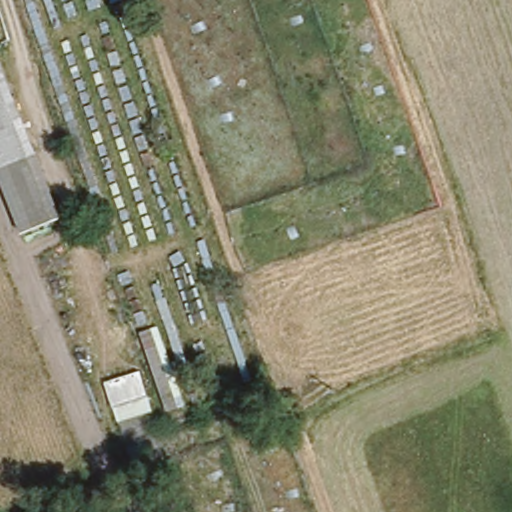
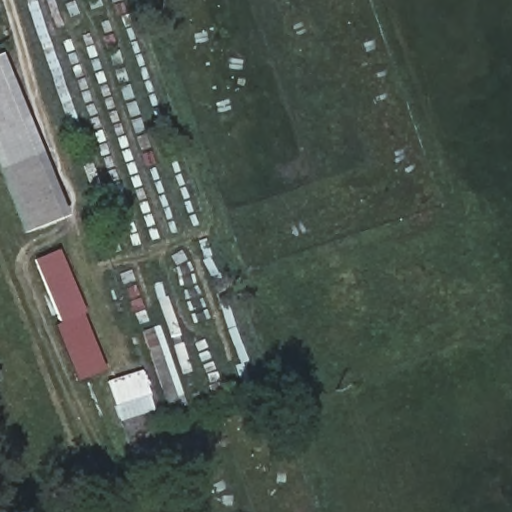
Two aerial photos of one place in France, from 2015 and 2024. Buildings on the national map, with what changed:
unchanged [(24,235),(0,176),(0,55),(66,216),(24,235)]
new [(34,260),(59,250),(101,373),(72,381),(34,260)]
unchanged [(119,422),(104,380),(140,369),(152,411),(119,422)]

